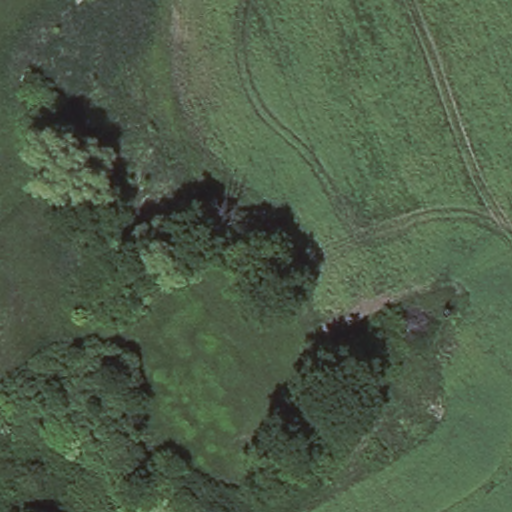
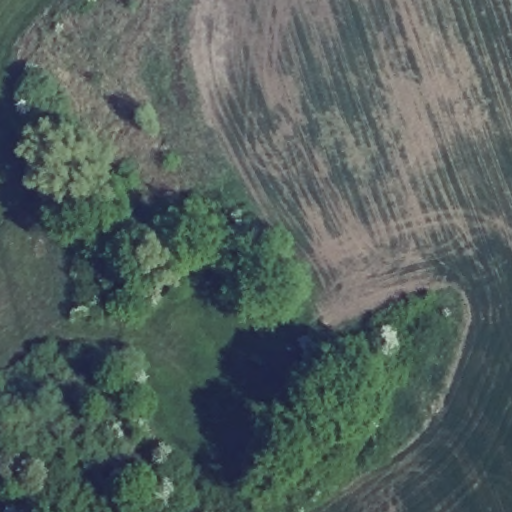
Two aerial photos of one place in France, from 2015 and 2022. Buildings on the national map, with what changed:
unchanged [(380,432),(396,423),(407,442),(391,451),(380,432)]

